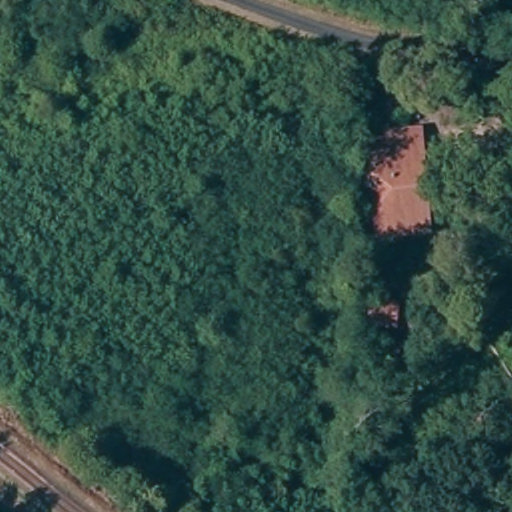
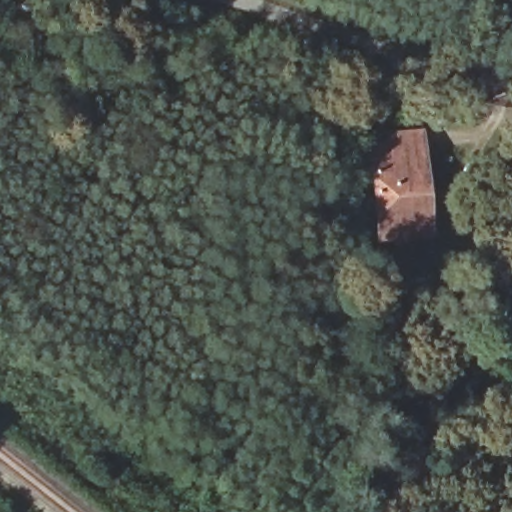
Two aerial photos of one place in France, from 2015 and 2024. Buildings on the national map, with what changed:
unchanged [(420,229),(370,233),(363,141),(381,140),(381,129),(414,127),(416,167),(419,207),(420,229)]

